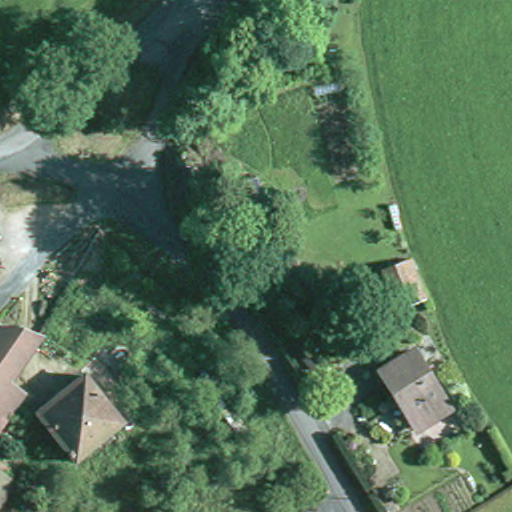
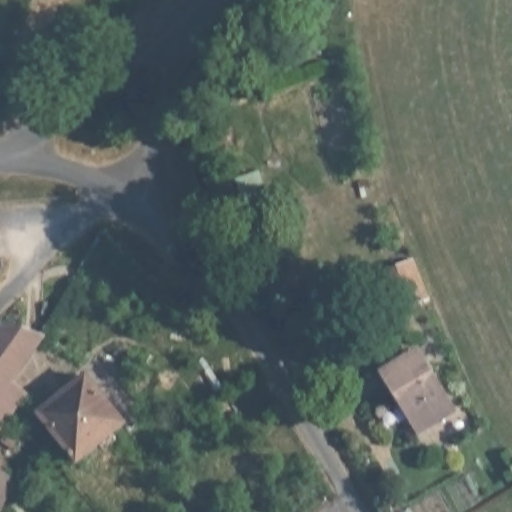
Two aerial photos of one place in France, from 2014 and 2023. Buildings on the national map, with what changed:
unchanged [(452,333),(436,340),(420,306),(437,299),(452,333)]
unchanged [(14,387),(30,398),(0,436),(0,327),(46,342),(14,387)]
unchanged [(401,403),(382,374),(417,352),(452,407),(449,409),(425,425),(419,429),(401,403)]
unchanged [(41,414),(90,376),(127,427),(81,466),(41,414)]
unchanged [(0,508),(0,481),(11,491),(0,508)]

